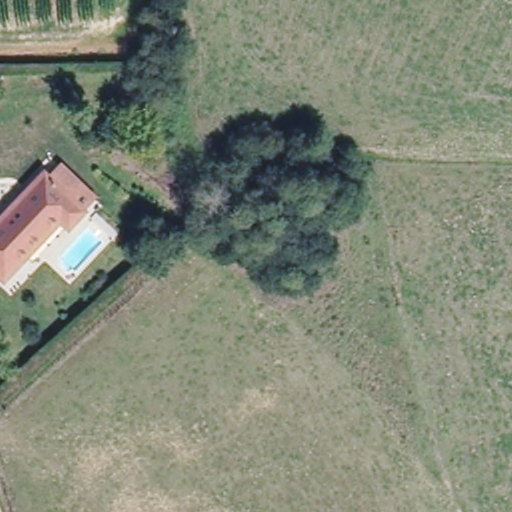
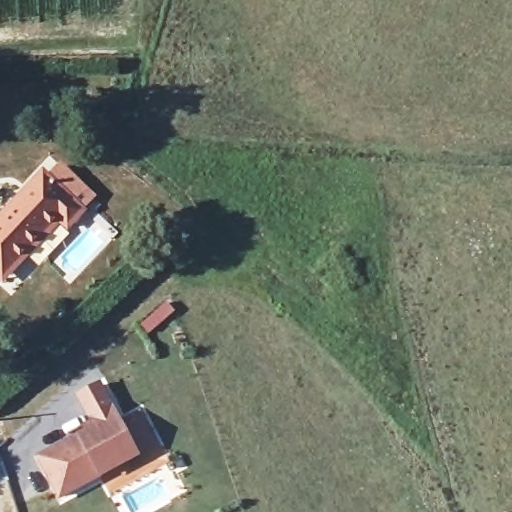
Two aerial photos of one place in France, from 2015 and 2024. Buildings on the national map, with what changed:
unchanged [(13,199),(39,174),(44,179),(56,168),(87,200),(76,212),(77,214),(61,229),(54,222),(9,265),(0,273),(0,211),(13,199)]
new [(102,382),(141,458),(60,500),(37,458),(85,430),(82,426),(90,422),(76,396),(102,382)]

